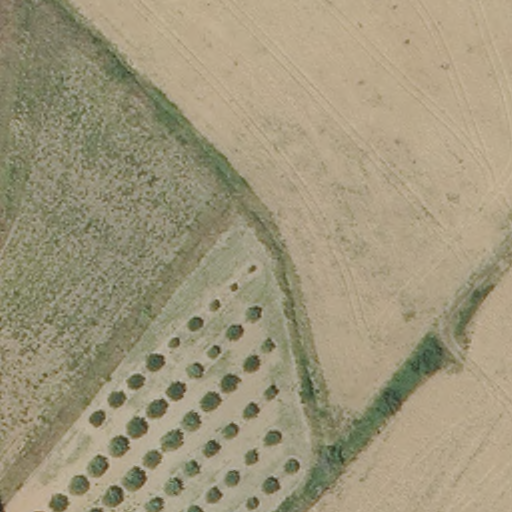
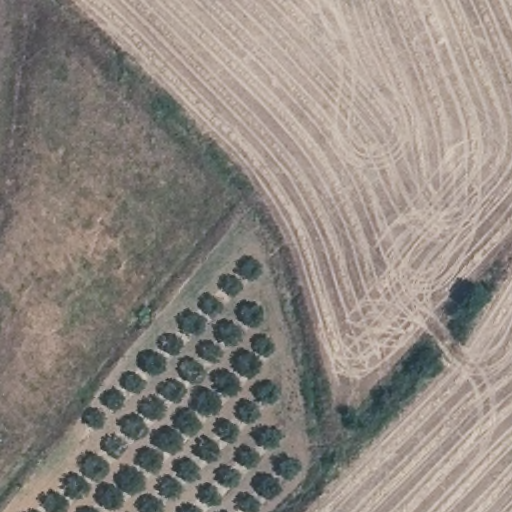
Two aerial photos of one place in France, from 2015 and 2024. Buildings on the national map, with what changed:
[]

